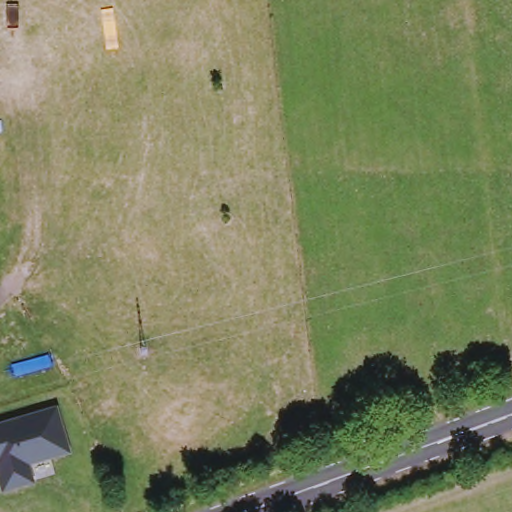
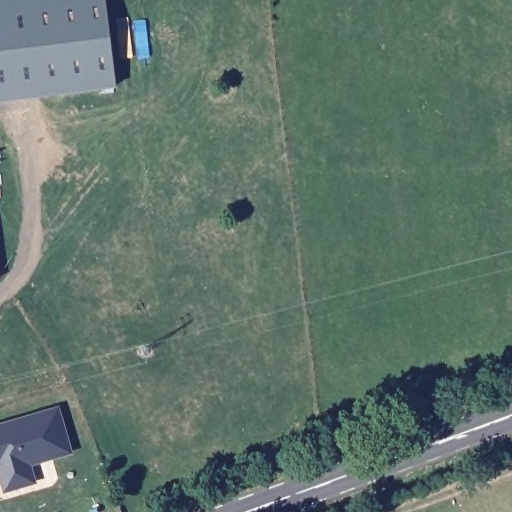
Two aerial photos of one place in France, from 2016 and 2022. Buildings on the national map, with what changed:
new [(0,103),(0,0),(106,0),(118,89),(0,103)]
unchanged [(0,279),(0,270),(1,278),(0,279)]
unchanged [(73,451),(29,465),(34,482),(1,491),(0,487),(0,422),(60,405),(73,451)]

